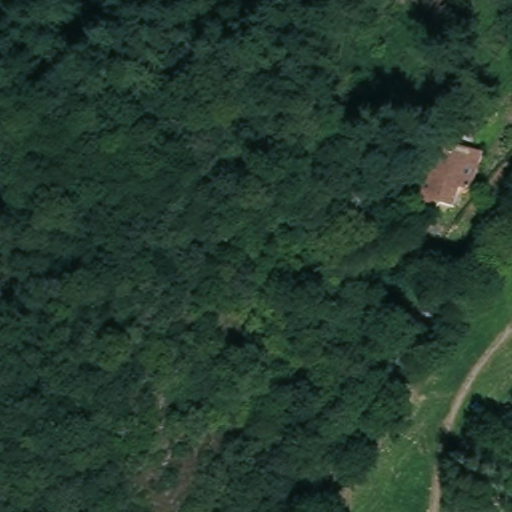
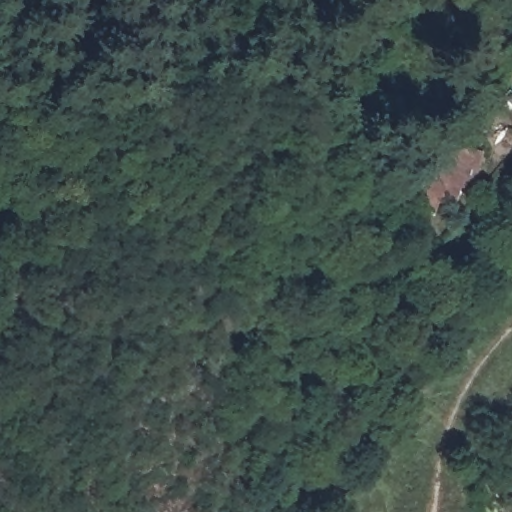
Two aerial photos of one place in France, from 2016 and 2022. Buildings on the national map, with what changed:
unchanged [(512,78),(512,87),(507,84),(512,78)]
unchanged [(421,212),(422,207),(413,204),(430,152),(437,155),(438,152),(441,143),(469,151),(482,155),(470,194),(459,190),(453,210),(437,205),(436,211),(434,216),(421,212)]

